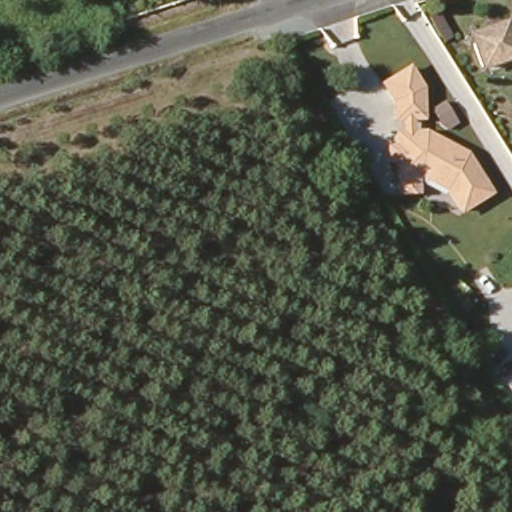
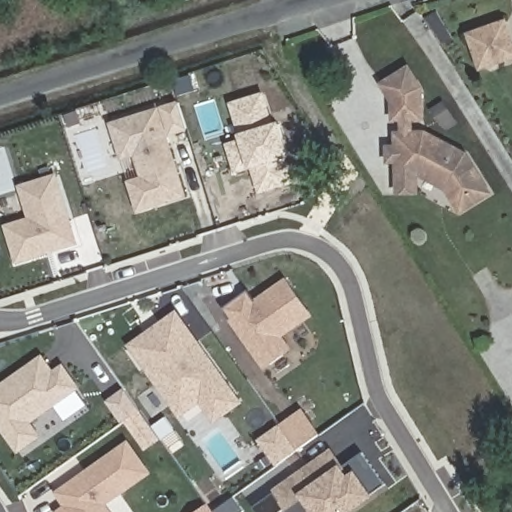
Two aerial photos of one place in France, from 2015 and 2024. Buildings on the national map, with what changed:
unchanged [(470,34),(506,21),(512,37),(512,57),(482,67),(470,34)]
unchanged [(426,88),(427,119),(417,120),(417,129),(425,129),(472,153),(496,195),(461,213),(447,190),(421,175),(422,194),(398,194),(395,164),(388,165),(386,145),(395,144),(394,131),(405,130),(404,120),(394,121),(392,101),(380,83),(410,64),(426,88)]
new [(237,171),(229,145),(244,140),(232,103),(263,93),(273,125),(279,123),(289,155),(284,156),(292,180),(261,190),(255,173),(253,166),(237,171)]
new [(159,109),(185,195),(139,209),(130,182),(144,177),(136,154),(123,158),(112,124),(159,109)]
new [(31,218),(21,185),(56,174),(77,241),(61,247),(60,243),(46,247),(47,251),(18,260),(7,225),(31,218)]
new [(249,290),(251,294),(256,301),(286,280),(311,314),(281,336),(290,349),(265,367),(224,308),(236,298),(249,290)]
new [(161,324),(177,313),(240,402),(216,419),(202,399),(181,413),(132,345),(148,334),(161,324)]
new [(54,372),(63,365),(79,387),(30,422),(40,436),(19,451),(0,424),(0,387),(42,357),(50,366),(54,372)]
new [(127,389),(141,410),(125,422),(110,401),(127,389)]
new [(283,427),(304,412),(320,434),(299,449),(279,464),(261,440),(282,425),(283,427)]
new [(60,492),(129,443),(149,472),(105,504),(110,512),(61,512),(69,506),(60,492)]
new [(344,467),(365,452),(386,484),(371,494),(347,512),(317,512),(316,510),(313,512),(289,512),(286,508),(281,512),(258,512),(255,506),(275,492),(332,451),(344,467)]
new [(215,512),(197,512),(209,503),(215,512)]

